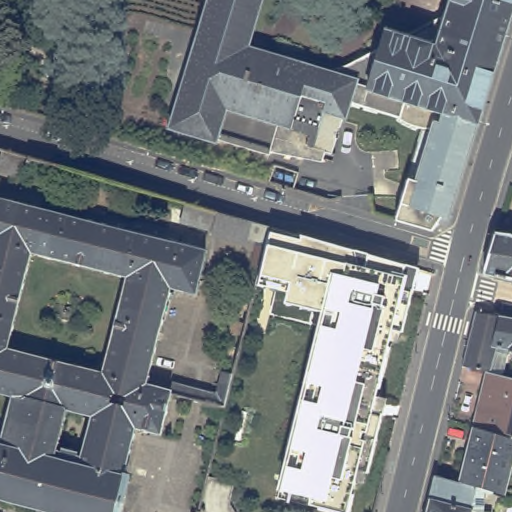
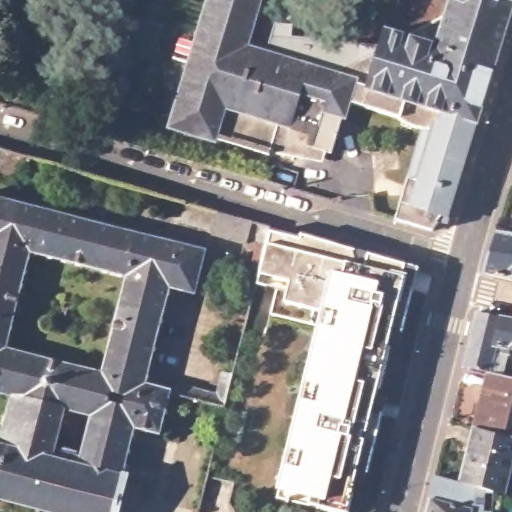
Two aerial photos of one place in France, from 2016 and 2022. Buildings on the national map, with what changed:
unchanged [(407,220),(391,215),(404,172),(412,175),(427,124),(424,124),(421,124),(418,123),(414,122),(411,121),(407,120),(403,119),(401,117),(399,116),(396,114),(393,111),(342,95),(326,147),(302,140),(298,152),(265,146),(264,149),(168,120),(194,34),(192,34),(202,0),(249,0),(237,42),(261,50),(303,62),(305,62),(306,63),(307,63),(309,63),(311,63),(312,64),(317,64),(318,64),(324,63),(326,62),(330,61),(332,61),(336,60),(341,59),(342,58),(344,57),(375,40),(379,25),(397,31),(440,7),(442,0),(508,0),(472,119),(467,136),(444,214),(437,211),(430,221),(427,225),(424,225),(407,220)]
unchanged [(192,297),(170,290),(145,388),(168,395),(158,435),(134,428),(123,476),(2,442),(14,394),(0,390),(0,198),(203,255),(192,297)]
unchanged [(249,245),(182,227),(188,204),(255,224),(249,245)]
unchanged [(278,490),(287,454),(301,396),(322,313),(283,303),(286,293),(255,285),(257,279),(258,275),(270,226),(301,235),(303,236),(368,255),(404,265),(413,268),(416,269),(411,291),(401,332),(391,330),(386,347),(389,348),(378,390),(376,390),(370,413),(380,416),(366,473),(356,471),(350,495),(351,495),(347,512),(328,512),(316,509),(317,508),(307,506),(286,501),(288,493),(278,490)]
unchanged [(487,275),(499,236),(512,238),(512,281),(487,275)]
unchanged [(475,311),(500,315),(512,317),(512,323),(495,335),(486,371),(462,365),(475,311)]
unchanged [(506,348),(505,357),(497,360),(490,360),(488,372),(486,371),(495,335),(512,323),(512,349),(506,348)]
unchanged [(472,424),(486,371),(488,372),(512,378),(512,423),(509,435),(472,424)]
unchanged [(472,424),(509,435),(512,437),(512,457),(502,495),(458,482),(472,424)]
unchanged [(123,476),(126,476),(118,512),(42,512),(39,511),(39,512),(33,512),(34,510),(0,501),(0,442),(2,442),(123,476)]
unchanged [(435,475),(458,482),(502,495),(498,512),(426,512),(435,475)]

